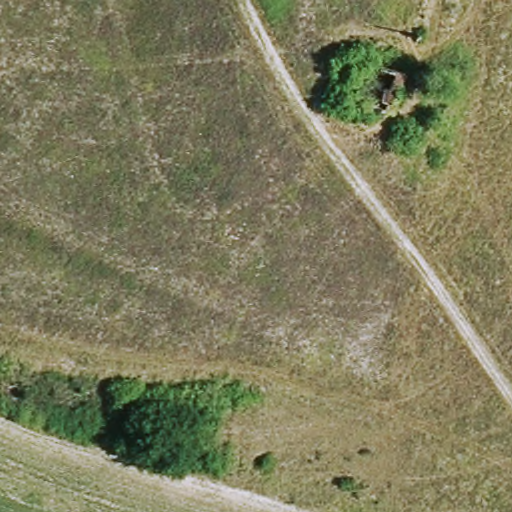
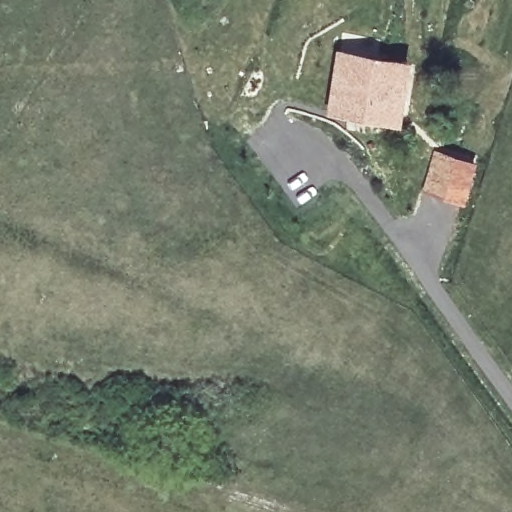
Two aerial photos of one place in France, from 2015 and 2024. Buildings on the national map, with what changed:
new [(328,111),(339,50),(410,61),(400,123),(328,111)]
demolished [(362,105),(369,65),(414,78),(406,115),(362,105)]
new [(434,149),(477,163),(465,204),(422,189),(434,149)]

